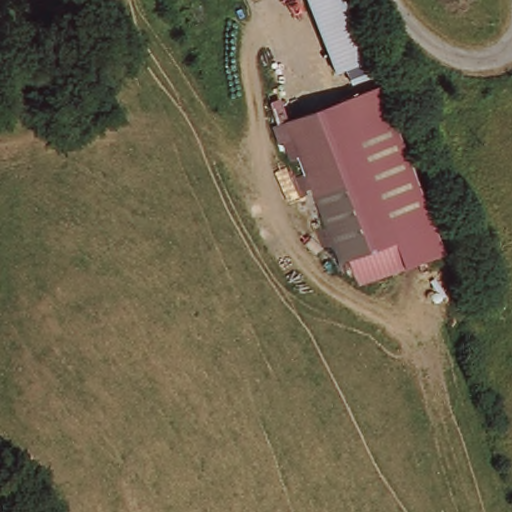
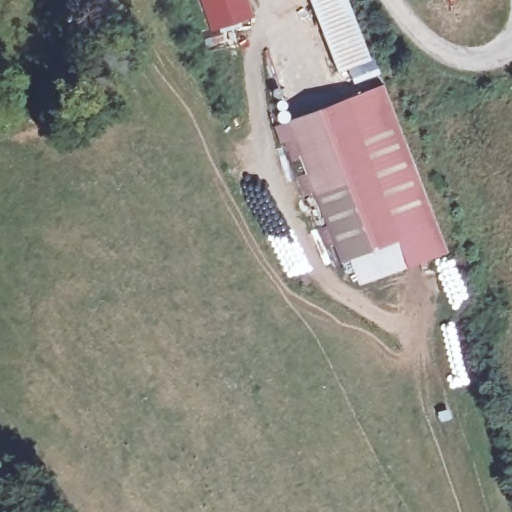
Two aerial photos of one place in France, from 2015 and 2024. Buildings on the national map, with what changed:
new [(201,0),(244,0),(251,18),(212,30),(201,0)]
unchanged [(333,78),(310,0),(345,0),(364,69),(333,78)]
unchanged [(384,77),(434,249),(346,276),(336,249),(327,251),(286,107),(384,77)]

